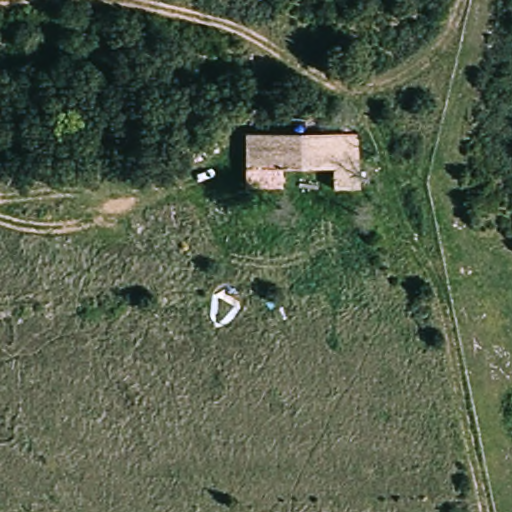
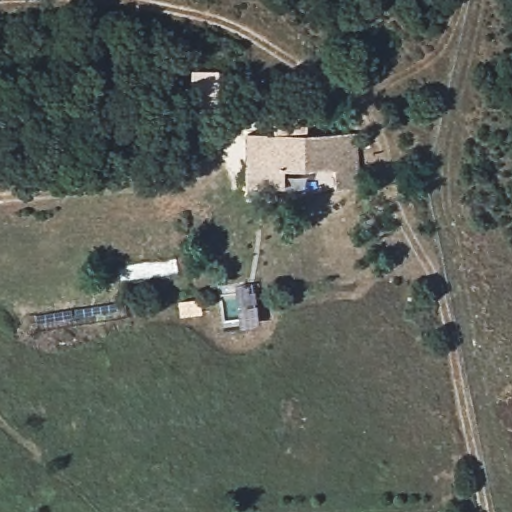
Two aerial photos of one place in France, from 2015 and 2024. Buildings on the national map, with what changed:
unchanged [(362,169),(350,169),(350,190),(332,191),(331,170),(279,170),(279,184),(246,186),(238,134),(255,134),(325,131),(362,130),(362,169)]
unchanged [(371,223),(362,231),(353,224),(361,215),(371,223)]

